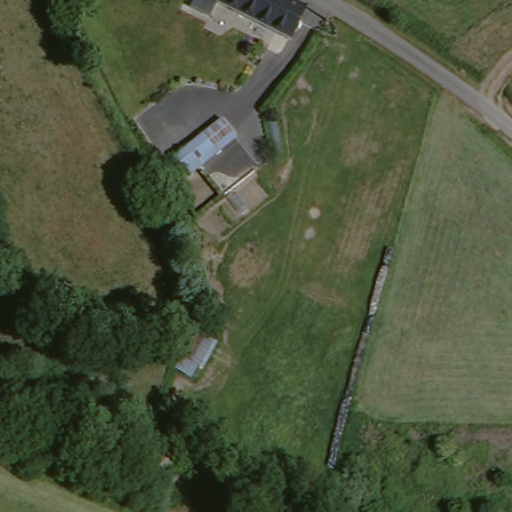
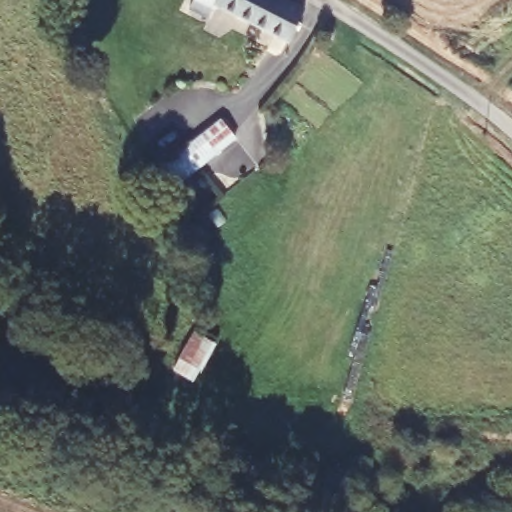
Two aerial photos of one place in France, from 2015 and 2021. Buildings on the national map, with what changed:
unchanged [(300,14),(285,44),(213,10),(205,28),(185,19),(194,0),(270,0),(300,14)]
unchanged [(229,129),(177,180),(165,168),(217,117),(229,129)]

